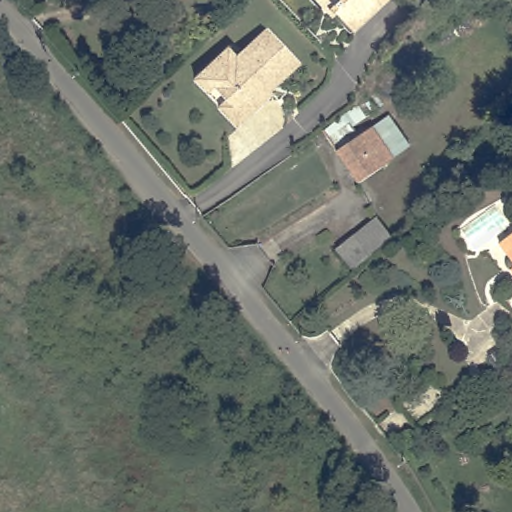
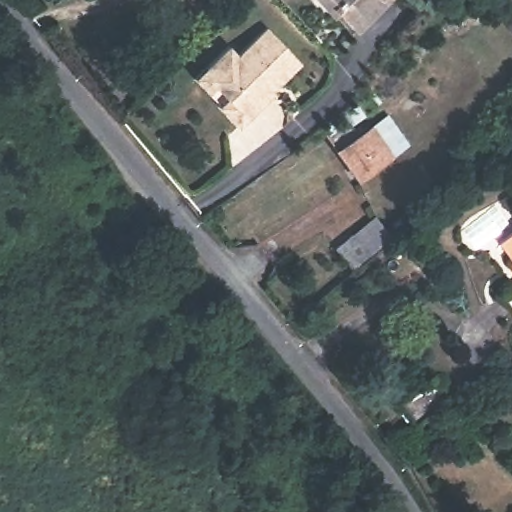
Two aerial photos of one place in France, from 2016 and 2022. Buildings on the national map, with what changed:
unchanged [(350,20),(345,24),(325,0),(374,0),(350,20)]
unchanged [(205,70),(224,51),(227,47),(236,56),(266,27),(300,61),(300,63),(277,84),(272,83),(268,87),(274,93),(266,100),(239,127),(219,107),(220,106),(207,93),(194,80),(205,70)]
unchanged [(415,156),(364,191),(332,147),(383,111),(415,156)]
unchanged [(341,250),(381,218),(397,239),(357,271),(341,250)]
unchanged [(512,236),(512,246),(507,240),(512,236)]
unchanged [(512,291),(512,297),(509,293),(512,291)]

